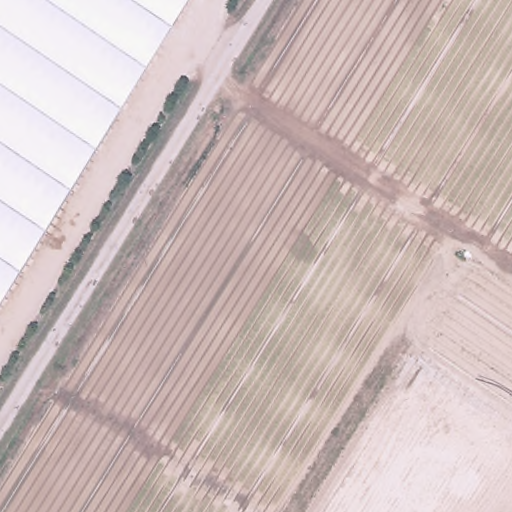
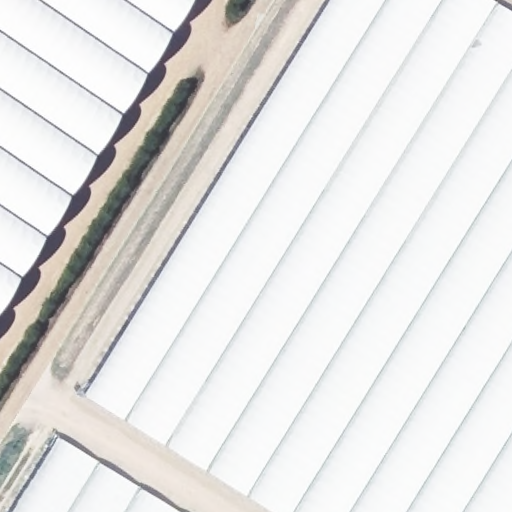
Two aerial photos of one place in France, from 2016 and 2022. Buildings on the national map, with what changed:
unchanged [(0,302),(0,0),(188,0),(0,302)]
new [(334,0),(494,0),(512,11),(512,512),(274,512),(87,396),(334,0)]
new [(181,512),(17,512),(62,438),(181,512)]

